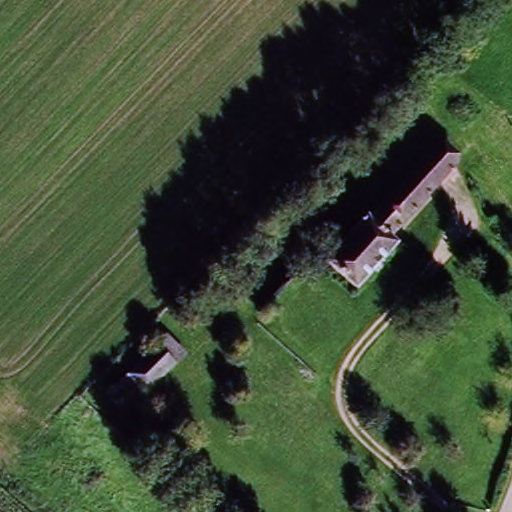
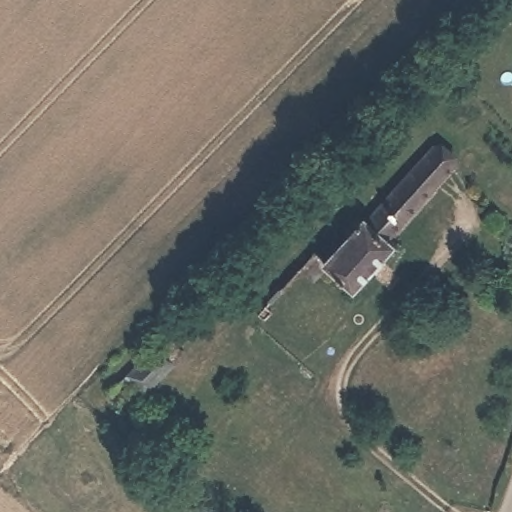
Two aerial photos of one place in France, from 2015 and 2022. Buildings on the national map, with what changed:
unchanged [(470,169),(402,234),(409,241),(356,292),(326,260),(449,144),(470,169)]
unchanged [(145,361),(160,377),(125,411),(109,395),(145,361)]

